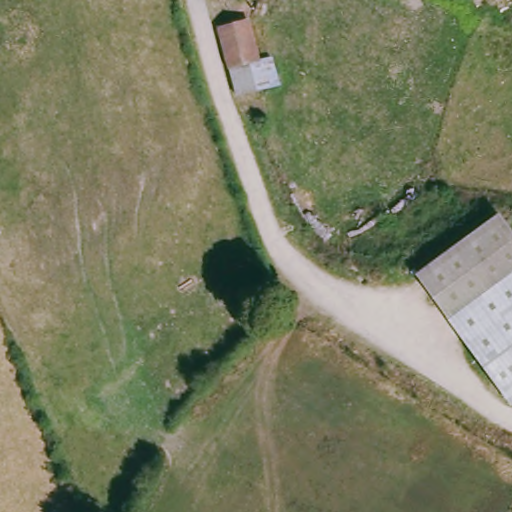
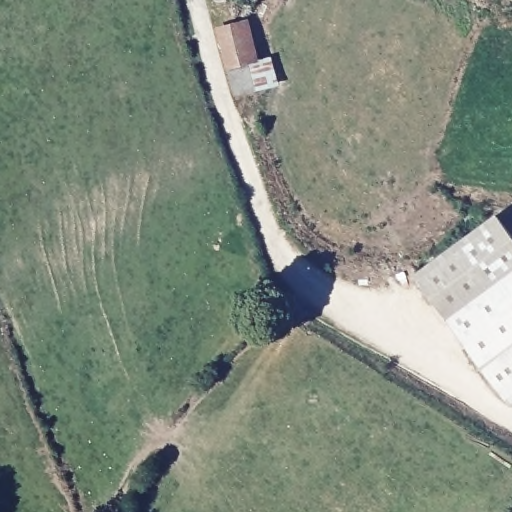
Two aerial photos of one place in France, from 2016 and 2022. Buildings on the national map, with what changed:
unchanged [(249,95),(231,30),(261,21),(264,32),(272,59),(267,61),(274,88),(249,95)]
unchanged [(420,269),(469,235),(504,211),(505,213),(512,224),(512,271),(499,281),(452,313),(420,269)]
unchanged [(499,281),(512,271),(512,302),(499,281)]
unchanged [(512,302),(512,397),(511,398),(452,313),(499,281),(512,302)]

